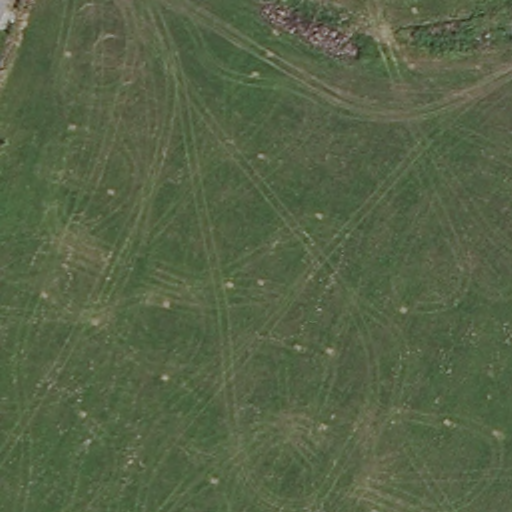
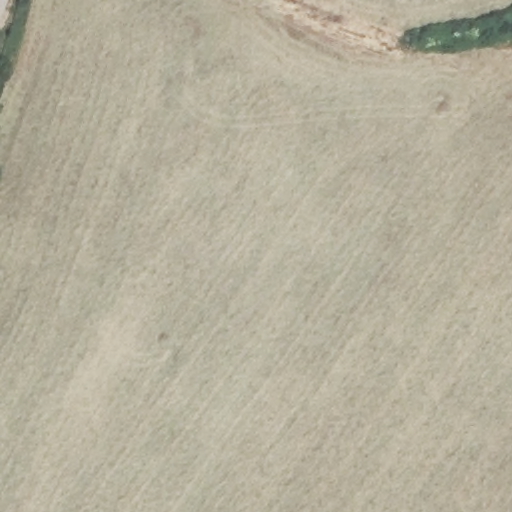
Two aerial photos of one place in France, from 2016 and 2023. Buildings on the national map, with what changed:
unchanged [(0,17),(0,0),(7,0),(0,17)]

